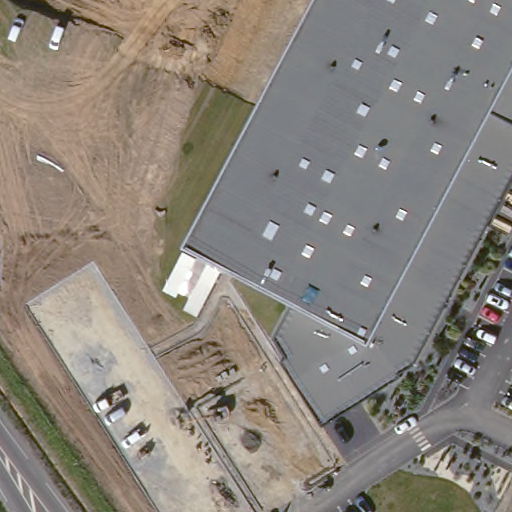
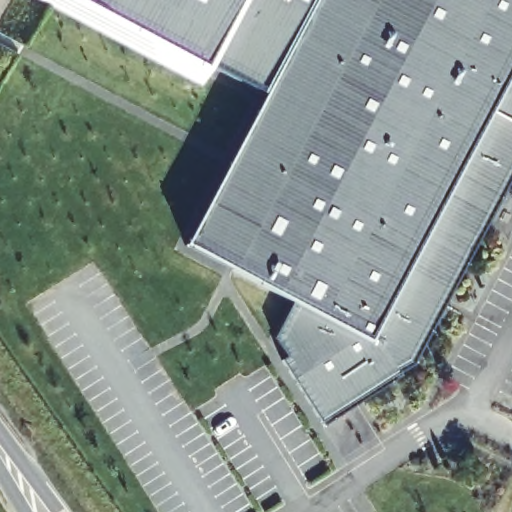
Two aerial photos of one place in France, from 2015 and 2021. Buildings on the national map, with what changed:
new [(212,65),(208,70),(76,0),(315,0),(266,94),(212,65)]
unchanged [(413,363),(323,424),(282,359),(289,354),(276,335),(296,301),(187,245),(315,0),(512,0),(512,173),(413,363)]

